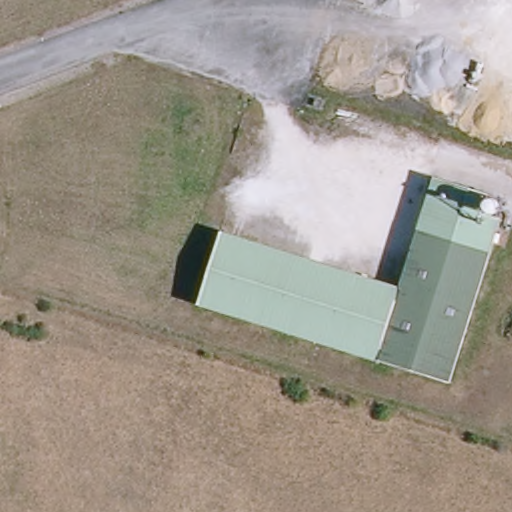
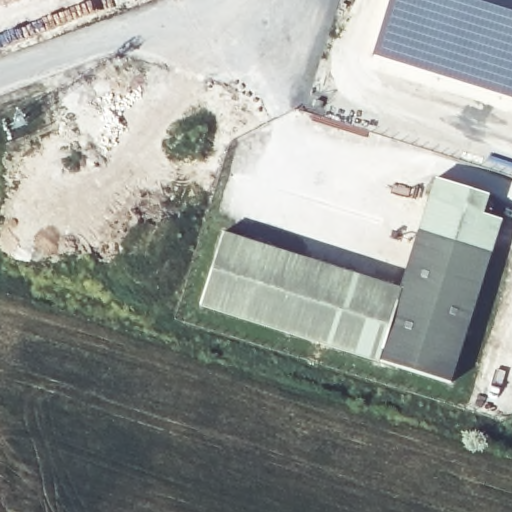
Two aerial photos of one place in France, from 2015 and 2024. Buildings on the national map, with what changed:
new [(373,54),(390,0),(508,0),(512,1),(512,97),(373,54)]
unchanged [(403,286),(437,175),(488,190),(482,212),(502,218),(454,382),(200,305),(223,229),(403,286)]

